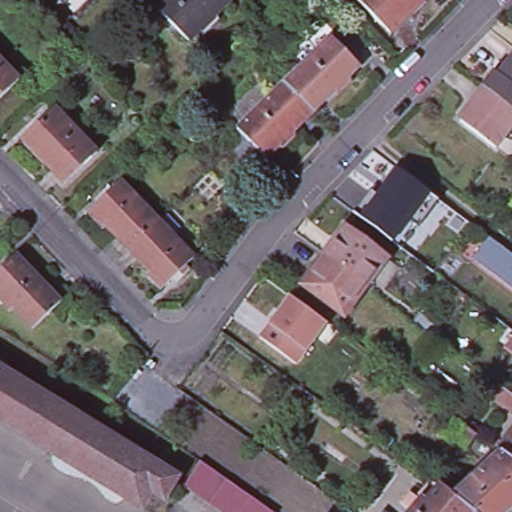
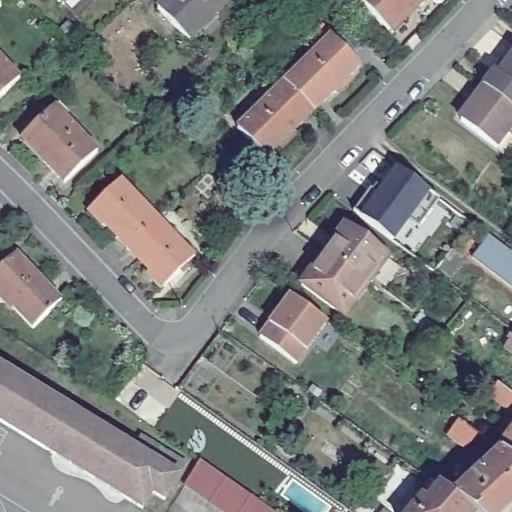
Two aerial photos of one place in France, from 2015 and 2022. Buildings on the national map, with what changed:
unchanged [(70,0),(61,9),(52,0),(70,0)]
unchanged [(156,12),(169,0),(233,0),(189,44),(156,12)]
unchanged [(362,0),(430,0),(396,34),(362,0)]
unchanged [(331,39),(360,68),(313,116),(284,86),(331,39)]
unchanged [(502,70),(512,57),(512,102),(486,83),(498,67),(502,70)]
unchanged [(18,84),(0,101),(0,63),(18,84)]
unchanged [(512,129),(501,144),(464,117),(478,100),(474,98),(486,83),(512,102),(512,129)]
unchanged [(284,86),(313,116),(266,162),(238,133),(284,86)]
unchanged [(23,140),(55,110),(98,155),(66,185),(23,140)]
unchanged [(371,192),(379,197),(398,171),(431,195),(440,202),(419,230),(409,222),(393,244),(354,215),(371,192)]
unchanged [(110,225),(106,228),(91,212),(125,180),(163,219),(132,247),(110,225)]
unchanged [(165,288),(148,272),(152,268),(132,247),(163,219),(198,256),(165,288)]
unchanged [(344,228),(388,260),(367,289),(361,285),(323,257),(344,228)]
unchanged [(512,256),(512,291),(472,260),(488,238),(512,256)]
unchanged [(361,285),(367,289),(344,320),(339,315),(304,290),(300,287),(310,274),(323,257),(361,285)]
unchanged [(0,297),(0,272),(16,258),(61,305),(31,331),(0,297)]
unchanged [(291,298),(326,325),(296,366),(260,340),(291,298)]
unchanged [(512,334),(512,352),(503,346),(512,334)]
unchanged [(4,365),(0,370),(132,452),(141,439),(186,467),(164,502),(151,495),(141,511),(0,424),(0,362),(4,365)]
unchanged [(507,388),(512,392),(512,411),(497,400),(507,388)]
unchanged [(478,437),(467,452),(447,437),(458,422),(478,437)]
unchanged [(495,445),(499,439),(504,442),(512,430),(512,458),(499,449),(495,445)]
unchanged [(453,494),(439,484),(441,482),(454,492),(499,449),(512,458),(512,509),(508,512),(474,512),(453,494)]
unchanged [(208,506),(196,498),(183,489),(200,462),(213,472),(226,481),(238,489),(251,498),(264,507),(271,512),(217,512),(208,506)]
unchanged [(314,489),(301,509),(288,499),(301,480),(314,489)]
unchanged [(421,495),(426,499),(439,484),(453,494),(474,512),(407,512),(421,495)]
unchanged [(384,510),(386,512),(382,512),(384,510)]

